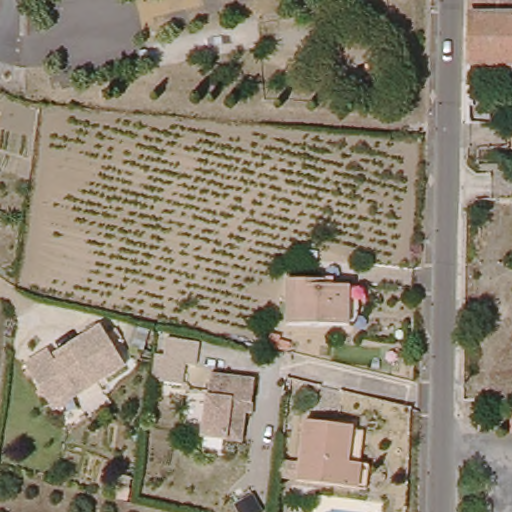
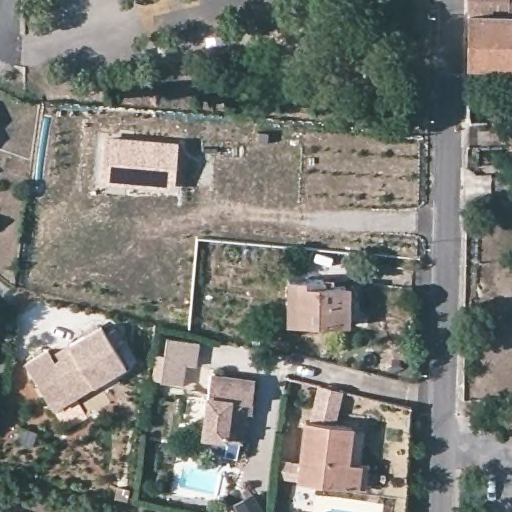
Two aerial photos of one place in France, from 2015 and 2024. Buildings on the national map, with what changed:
unchanged [(466,69),(470,0),(512,0),(512,69),(482,69),(466,69)]
unchanged [(486,87),(485,105),(469,105),(470,87),(486,87)]
unchanged [(476,114),(469,114),(469,109),(477,109),(476,114)]
new [(175,190),(101,183),(104,136),(179,141),(175,190)]
unchanged [(351,310),(350,313),(347,317),(343,317),(282,316),(283,276),(318,276),(331,276),(342,277),(350,277),(353,285),(354,290),(354,297),(354,302),(351,310)]
unchanged [(48,399),(29,362),(52,349),(55,357),(105,328),(110,337),(117,351),(126,367),(75,396),(53,408),(48,399)]
unchanged [(187,371),(152,366),(156,346),(191,351),(187,371)]
unchanged [(203,436),(213,372),(259,377),(256,400),(254,412),(245,411),(241,440),(203,436)]
unchanged [(319,388),(342,392),(335,423),(356,427),(367,430),(361,464),(357,488),(295,479),(306,420),(312,420),(319,388)]

